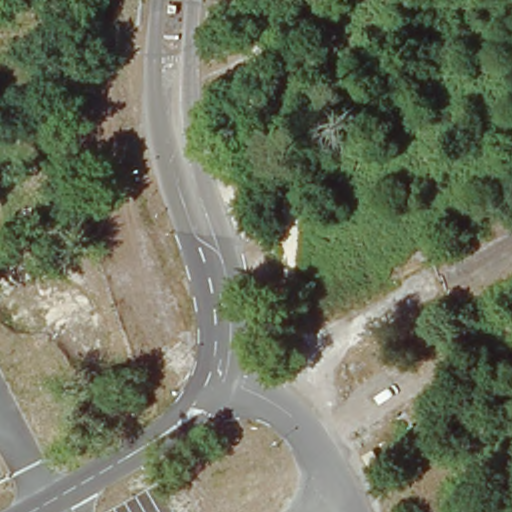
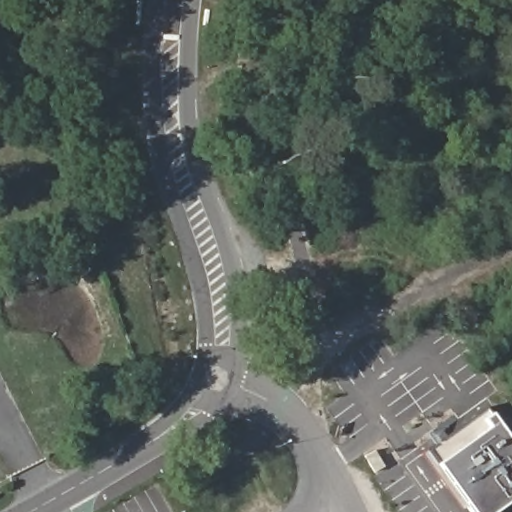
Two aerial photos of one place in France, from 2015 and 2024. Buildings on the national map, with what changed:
new [(497,409),(512,430),(512,509),(508,512),(481,512),(437,451),(497,409)]

